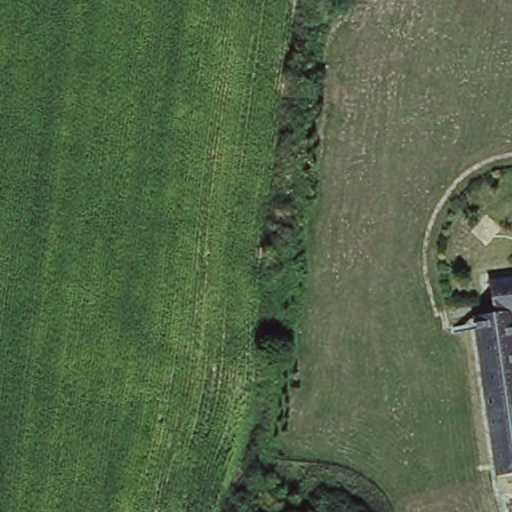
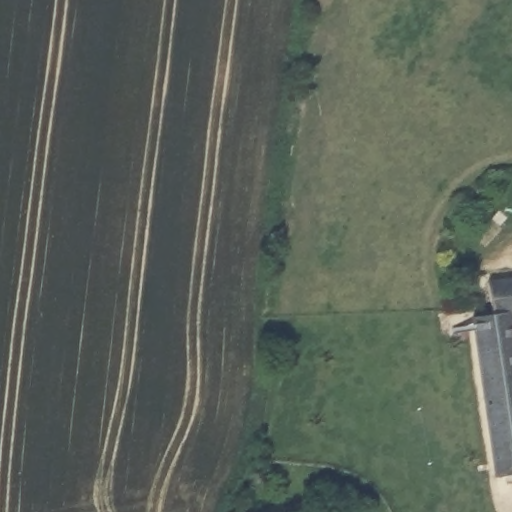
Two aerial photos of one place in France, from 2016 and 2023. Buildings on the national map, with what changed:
unchanged [(471,316),(490,311),(488,281),(512,278),(512,468),(487,471),(471,316)]

